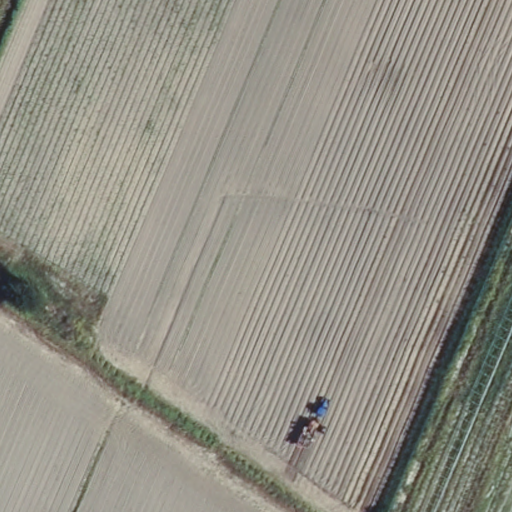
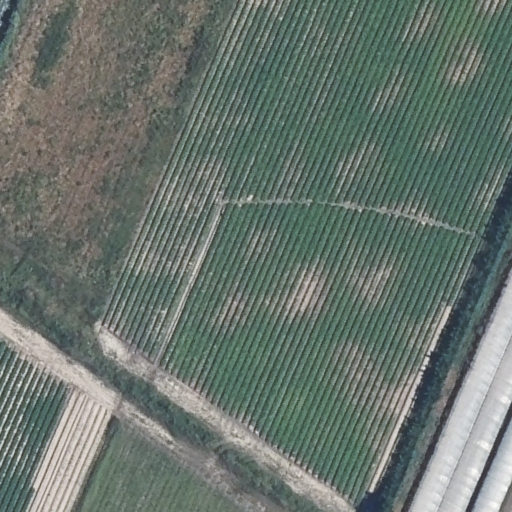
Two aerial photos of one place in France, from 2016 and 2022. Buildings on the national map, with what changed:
demolished [(512,262),(512,479),(498,512),(406,512),(512,262)]

